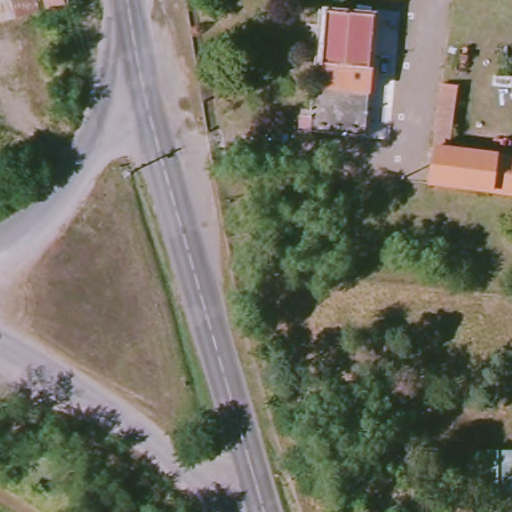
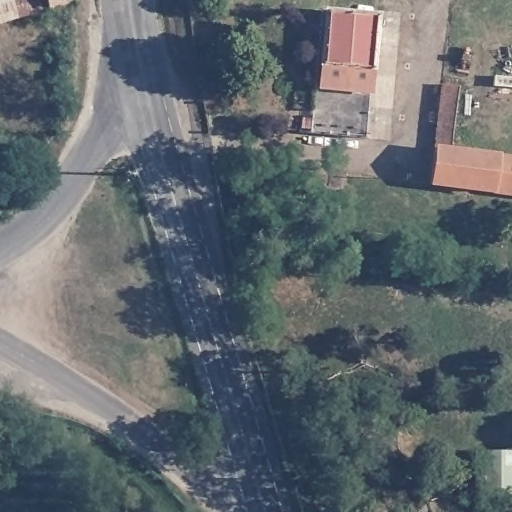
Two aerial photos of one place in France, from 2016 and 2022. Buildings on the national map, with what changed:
unchanged [(45,10),(0,24),(0,0),(42,0),(45,10)]
unchanged [(67,4),(52,9),(49,0),(66,0),(67,4)]
unchanged [(385,17),(365,140),(313,132),(333,10),(385,17)]
unchanged [(430,186),(437,150),(447,87),(461,90),(450,152),(512,160),(512,195),(430,186)]
unchanged [(477,496),(477,450),(512,450),(512,496),(477,496)]

